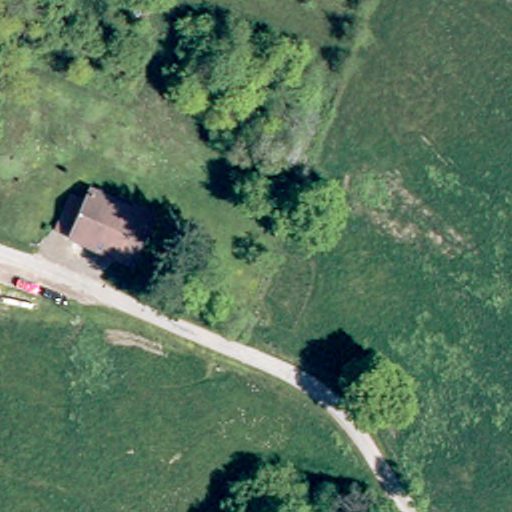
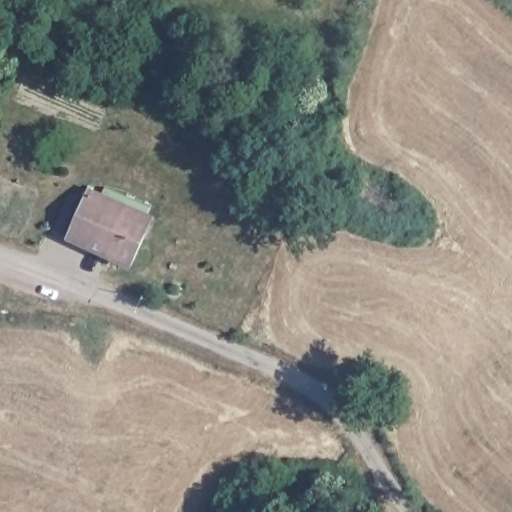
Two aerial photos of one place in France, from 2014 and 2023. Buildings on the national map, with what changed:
unchanged [(139,275),(75,248),(77,240),(63,234),(75,205),(90,211),(94,198),(158,224),(139,275)]

